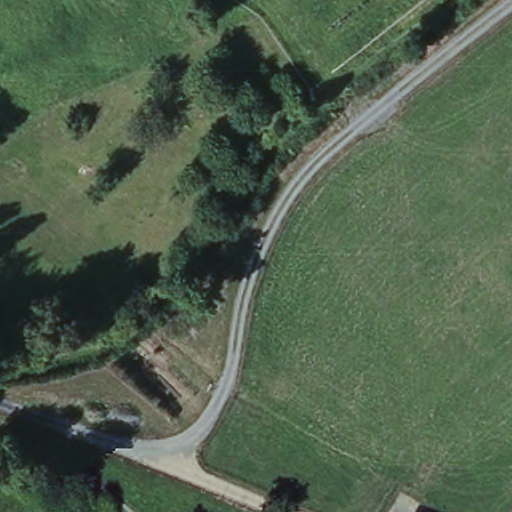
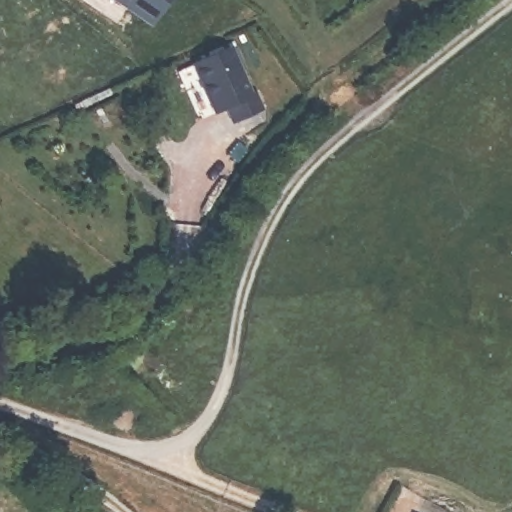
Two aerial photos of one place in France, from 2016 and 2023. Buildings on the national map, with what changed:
new [(158,27),(119,0),(176,0),(158,27)]
new [(249,94),(253,92),(262,108),(234,123),(225,106),(214,113),(191,65),(224,47),(249,94)]

